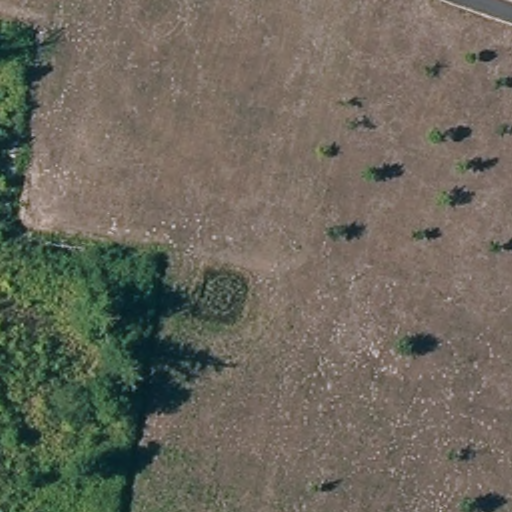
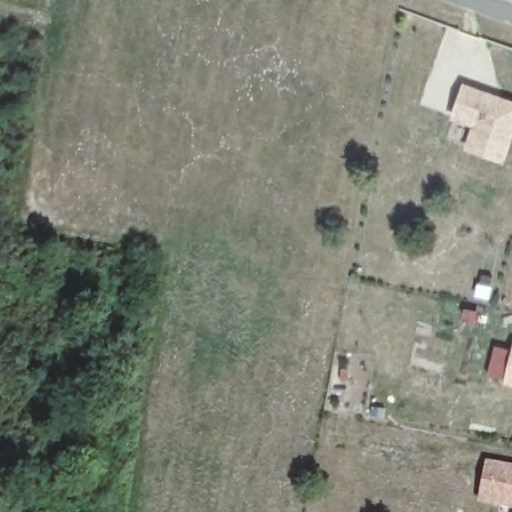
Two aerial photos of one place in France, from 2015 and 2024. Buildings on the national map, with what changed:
new [(512,102),(512,140),(504,164),(463,151),(471,126),(451,119),(464,83),(512,102)]
new [(506,384),(512,351),(512,385),(506,384)]
new [(486,459),(512,464),(512,508),(477,501),(486,459)]

